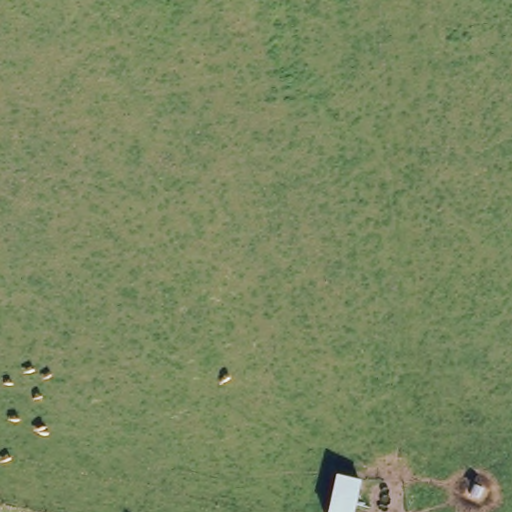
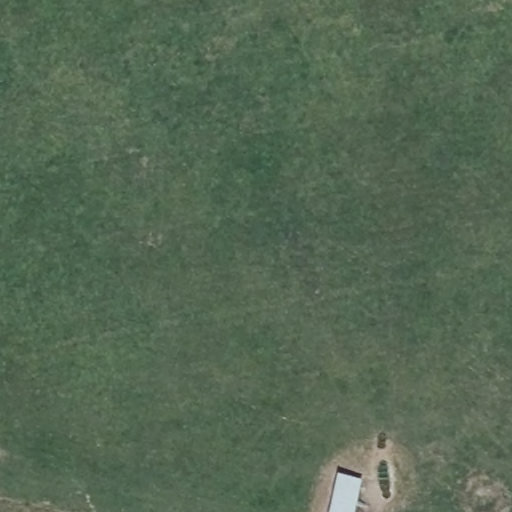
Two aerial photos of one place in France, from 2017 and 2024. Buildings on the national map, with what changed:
unchanged [(360,480),(353,512),(327,512),(335,474),(360,480)]

